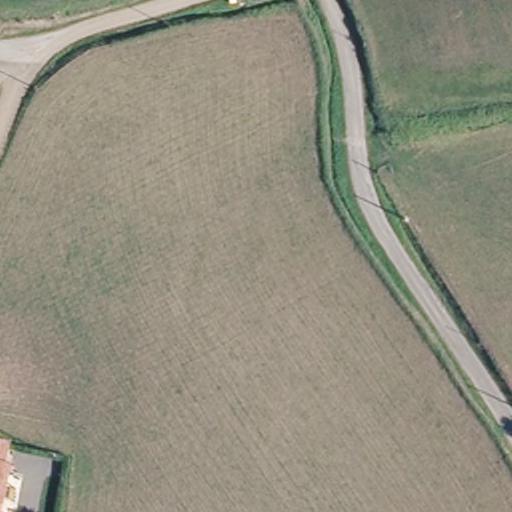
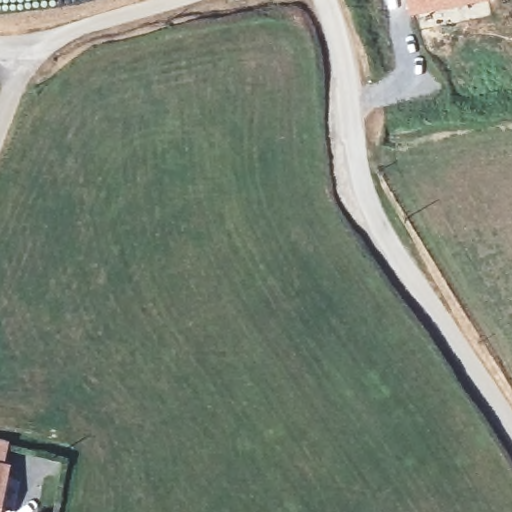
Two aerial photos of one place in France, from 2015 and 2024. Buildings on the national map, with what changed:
new [(407,0),(482,0),(409,14),(407,0)]
unchanged [(9,467),(0,512),(0,439),(2,440),(2,452),(1,464),(9,467)]

